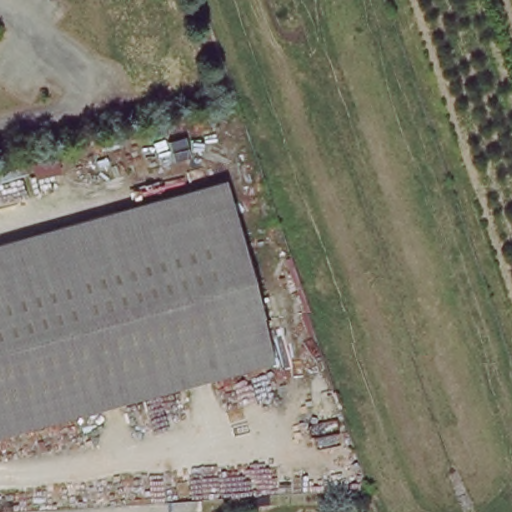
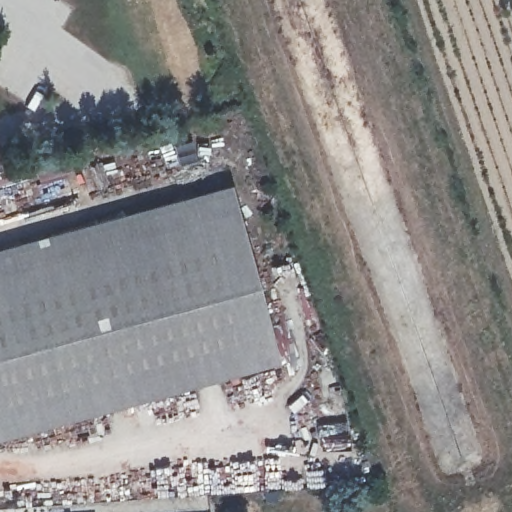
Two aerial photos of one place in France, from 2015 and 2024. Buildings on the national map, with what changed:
unchanged [(228,179),(281,364),(0,445),(0,245),(228,179)]

